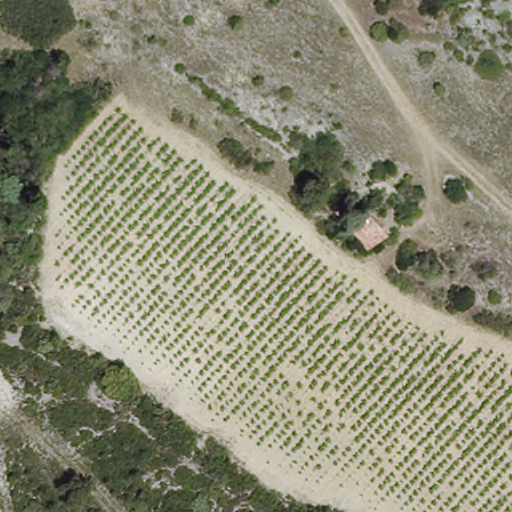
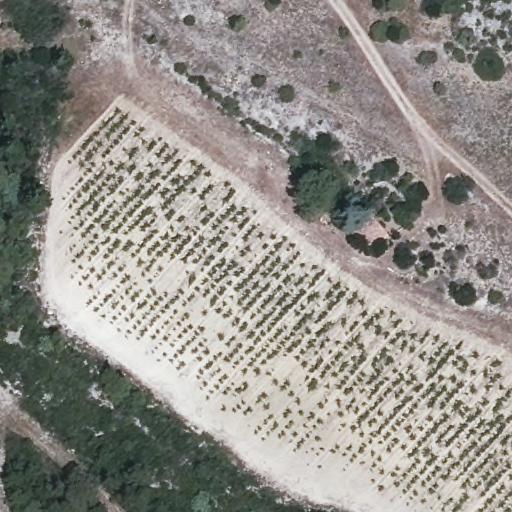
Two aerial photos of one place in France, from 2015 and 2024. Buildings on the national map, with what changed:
unchanged [(368,212),(391,238),(371,252),(346,230),(368,212)]

